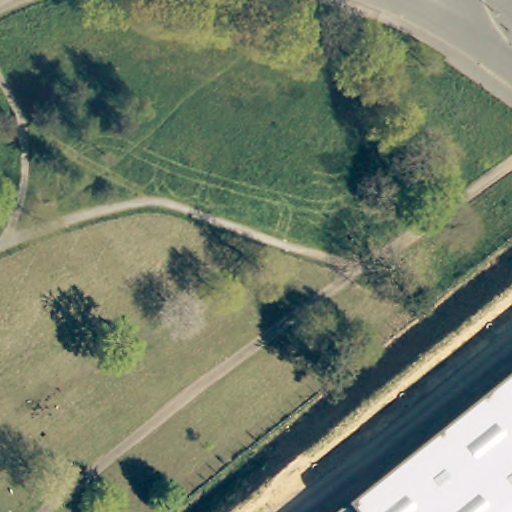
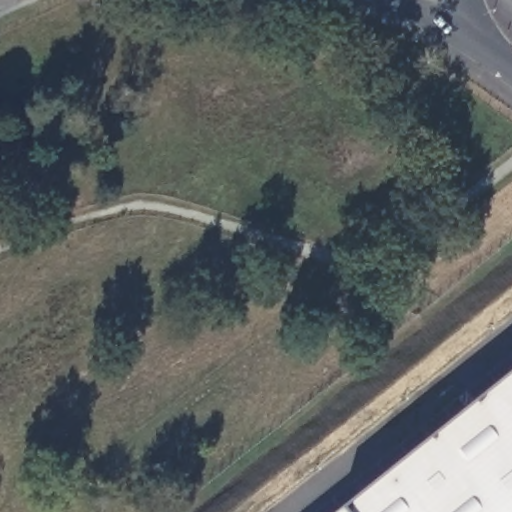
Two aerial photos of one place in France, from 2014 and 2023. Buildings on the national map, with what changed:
unchanged [(512,372),(512,512),(338,512),(343,508),(512,372)]

